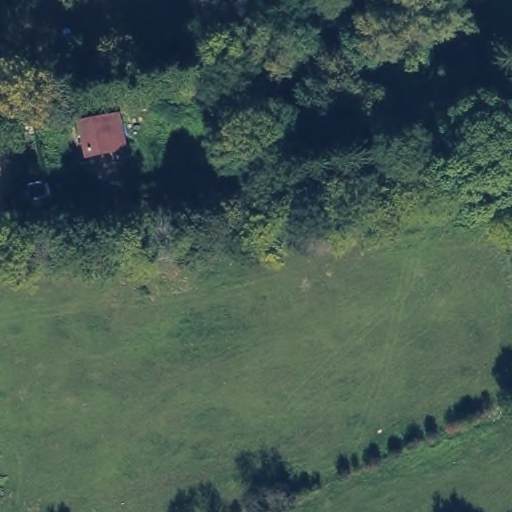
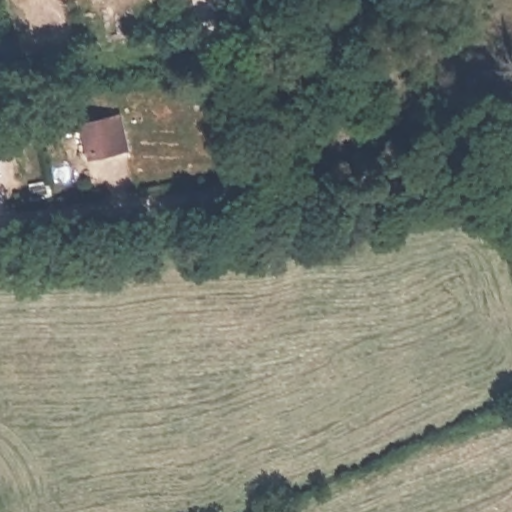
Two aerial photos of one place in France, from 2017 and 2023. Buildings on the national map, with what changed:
unchanged [(368,104),(350,108),(350,83),(340,84),(337,58),(363,57),(368,104)]
unchanged [(70,133),(95,127),(110,124),(115,153),(102,156),(77,162),(70,133)]

